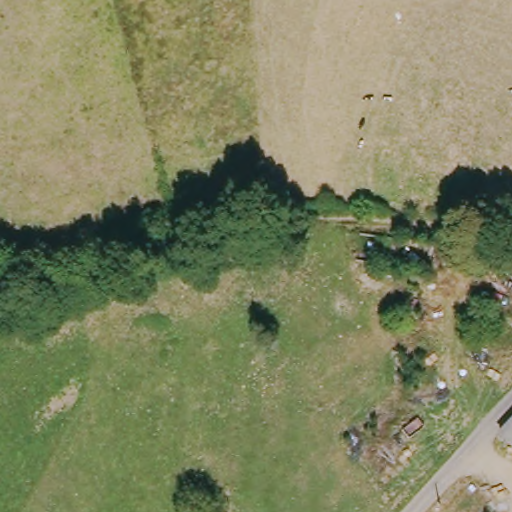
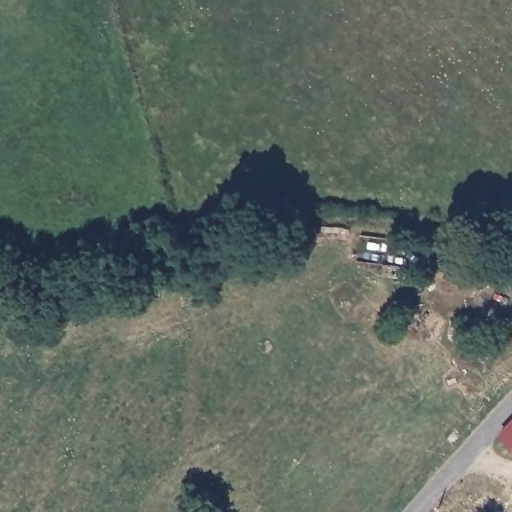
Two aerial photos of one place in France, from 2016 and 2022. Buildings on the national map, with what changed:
unchanged [(494,435),(512,413),(512,449),(494,435)]

